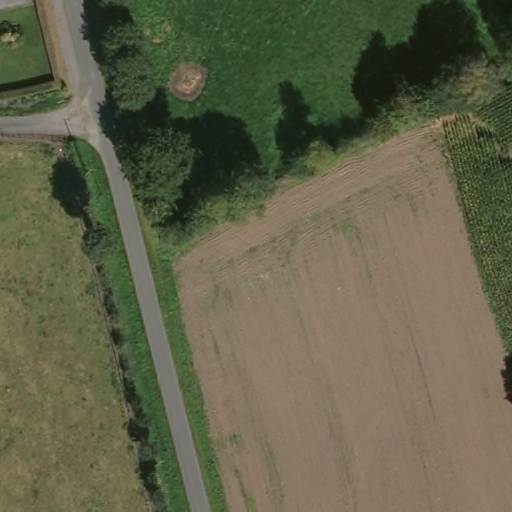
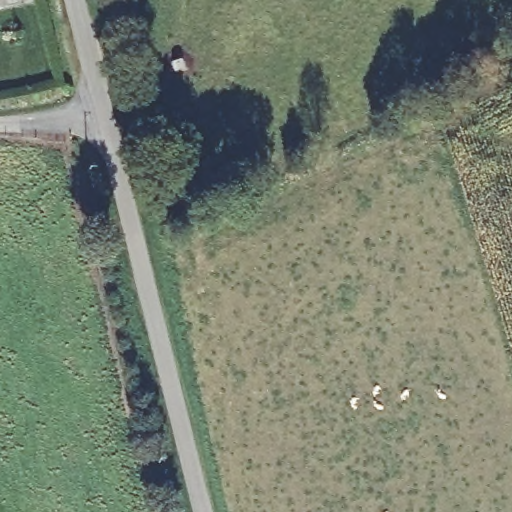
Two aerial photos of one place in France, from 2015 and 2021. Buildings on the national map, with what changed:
[]

